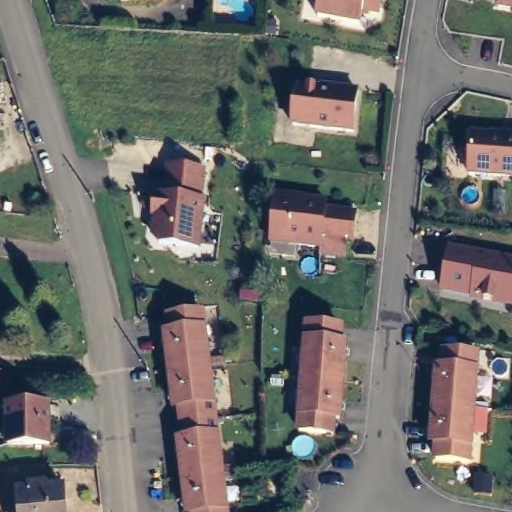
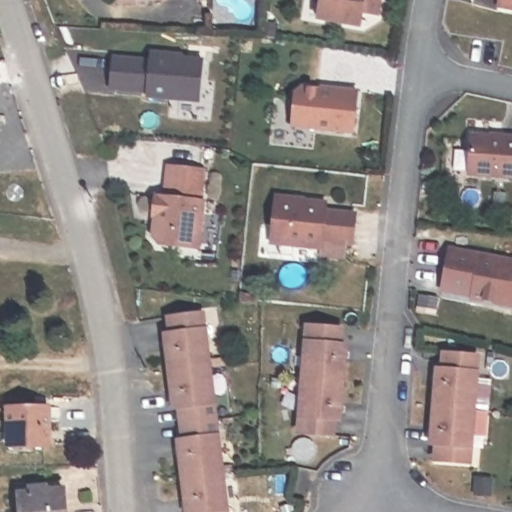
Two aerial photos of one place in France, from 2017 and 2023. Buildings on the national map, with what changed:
unchanged [(364,9),(361,24),(315,19),(318,0),(382,0),(380,13),(364,9)]
unchanged [(494,0),(512,0),(512,9),(493,3),(494,0)]
new [(116,56),(154,59),(154,54),(207,55),(202,106),(151,104),(152,95),(112,97),(116,56)]
unchanged [(321,88),(323,80),(359,84),(354,132),(291,124),(295,86),(321,88)]
unchanged [(512,174),(470,171),(472,129),(512,133),(512,174)]
unchanged [(2,156),(0,156),(0,144),(2,156)]
unchanged [(205,164),(201,194),(206,195),(199,250),(151,244),(153,220),(148,219),(150,193),(165,193),(169,161),(205,164)]
unchanged [(329,201),(328,207),(358,211),(355,242),(324,239),(323,245),(269,240),(273,197),(329,201)]
unchanged [(512,306),(440,290),(449,242),(512,255),(512,306)]
unchanged [(163,329),(163,315),(204,310),(229,512),(184,512),(160,329),(163,329)]
unchanged [(305,337),(306,325),(344,327),(341,335),(348,339),(341,426),(336,424),(334,439),(294,435),(301,337),(305,337)]
unchanged [(442,364),(442,349),(479,353),(472,464),(433,462),(434,448),(426,447),(433,364),(442,364)]
unchanged [(8,415),(53,414),(53,450),(7,451),(8,415)]
unchanged [(35,492),(35,488),(55,486),(56,491),(67,489),(69,512),(29,512),(27,493),(35,492)]

